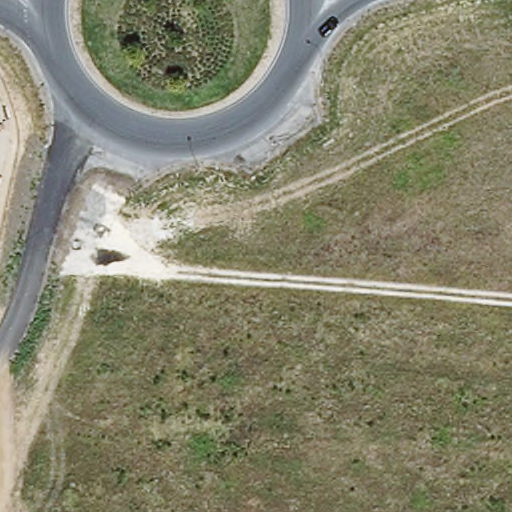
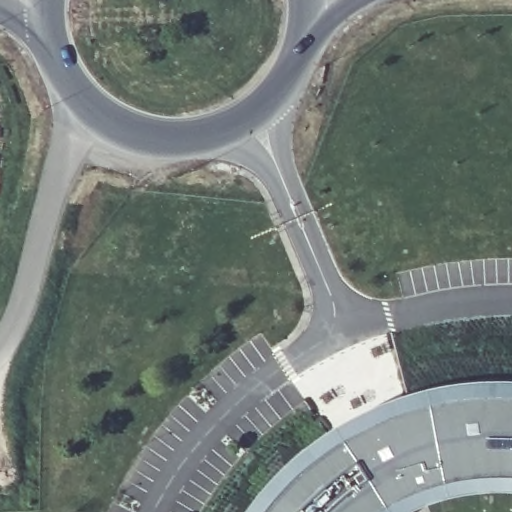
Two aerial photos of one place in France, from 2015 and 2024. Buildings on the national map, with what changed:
new [(256,491),(275,469),(302,443),(329,423),(359,407),(393,392),(430,383),(442,381),(444,351),(512,354),(512,474),(490,471),(451,473),(420,482),(393,493),(365,512),(241,512),(241,511),(256,491)]
new [(420,482),(451,473),(490,471),(512,474),(512,489),(502,487),(475,486),(440,491),(423,497),(403,505),(394,511),(392,512),(365,512),(393,493),(420,482)]

